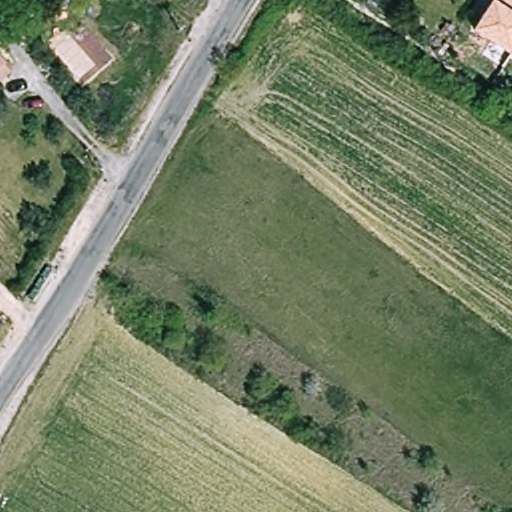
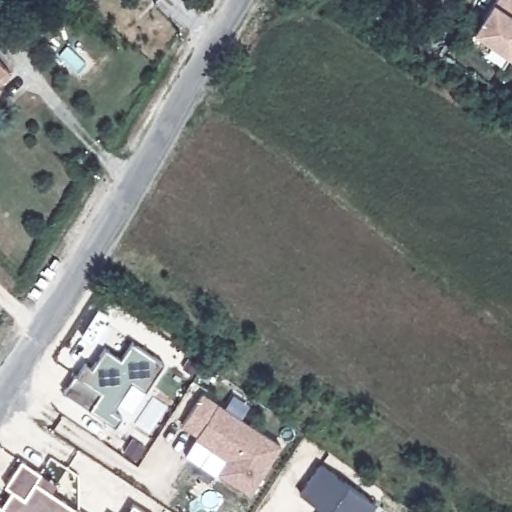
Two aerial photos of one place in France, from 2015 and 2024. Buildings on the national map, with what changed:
unchanged [(496,0),(512,0),(512,58),(475,32),(496,0)]
unchanged [(15,74),(0,87),(0,58),(15,74)]
unchanged [(1,90),(0,91),(0,88),(1,90)]
new [(72,372),(80,377),(87,364),(89,365),(102,345),(118,356),(129,338),(161,359),(144,387),(130,378),(111,407),(120,413),(114,423),(62,390),(72,372)]
new [(200,395),(279,446),(248,493),(217,473),(226,460),(194,438),(196,436),(180,425),(200,395)]
new [(51,491),(83,512),(0,512),(0,504),(10,489),(3,484),(21,459),(57,482),(51,491)]
new [(374,504),(368,512),(323,512),(298,495),(320,465),(374,504)]
new [(147,512),(126,512),(132,502),(147,512)]

